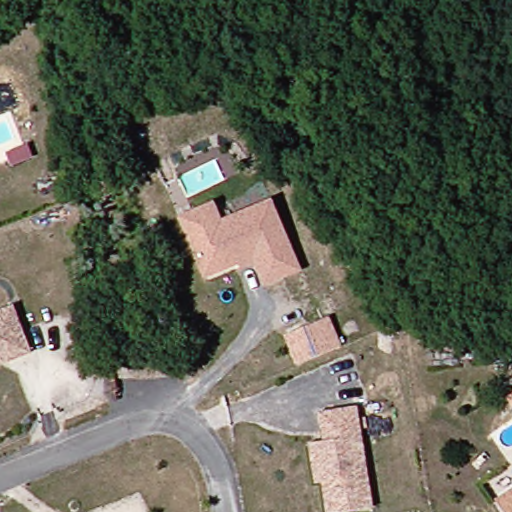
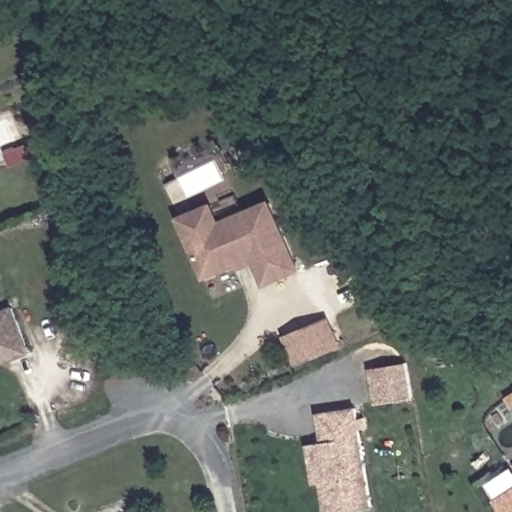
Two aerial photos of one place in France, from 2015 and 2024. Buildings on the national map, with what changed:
unchanged [(300,265),(265,279),(253,252),(204,272),(187,232),(179,214),(212,200),(220,218),(270,197),(300,265)]
unchanged [(34,351),(16,358),(0,364),(0,311),(15,306),(34,351)]
unchanged [(343,345),(298,364),(286,333),(330,316),(343,345)]
new [(369,368),(406,362),(412,398),(375,404),(369,368)]
unchanged [(366,417),(367,427),(360,429),(372,508),(346,512),(326,512),(321,480),(314,481),(307,437),(322,435),(319,412),(357,406),(359,418),(366,417)]
unchanged [(498,512),(492,504),(512,489),(512,512),(498,512)]

